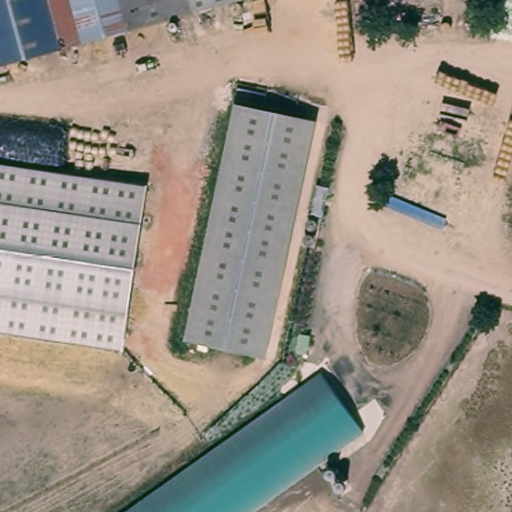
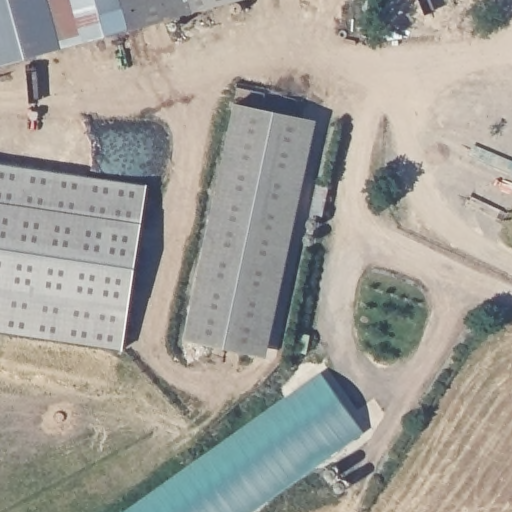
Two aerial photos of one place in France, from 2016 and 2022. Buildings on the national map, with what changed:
unchanged [(124,31),(34,56),(0,65),(0,0),(116,0),(124,31)]
unchanged [(124,31),(116,0),(185,0),(188,13),(124,31)]
unchanged [(236,0),(188,13),(185,0),(236,0)]
unchanged [(325,119),(275,355),(187,337),(235,101),(325,119)]
unchanged [(148,186),(124,350),(0,332),(0,163),(148,186)]
unchanged [(361,432),(248,512),(122,512),(320,372),(361,432)]

